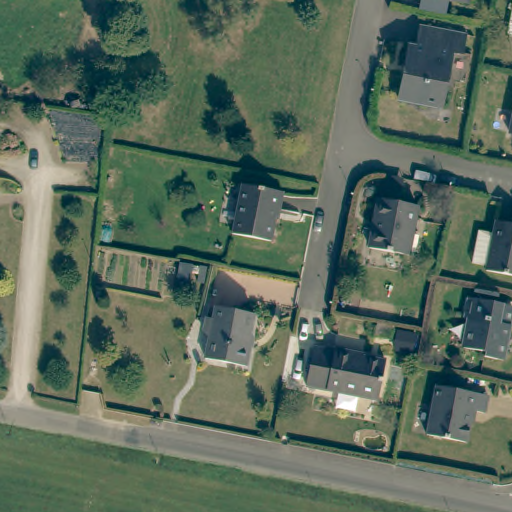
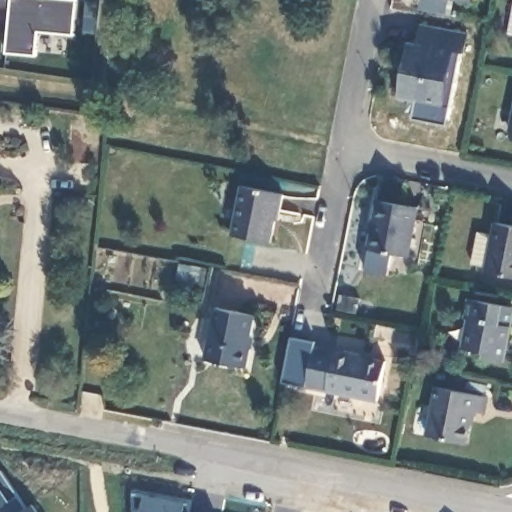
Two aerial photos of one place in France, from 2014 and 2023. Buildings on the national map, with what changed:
new [(75,15),(73,35),(38,32),(36,57),(7,53),(11,0),(77,0),(98,2),(98,17),(75,15)]
unchanged [(512,11),(512,29),(508,29),(512,11)]
unchanged [(466,34),(462,53),(453,52),(442,107),(398,97),(409,42),(416,43),(420,25),(466,34)]
unchanged [(512,120),(512,134),(509,133),(512,120)]
unchanged [(283,195),(279,215),(276,214),(271,243),(232,236),(241,187),(283,195)]
unchanged [(417,207),(408,256),(368,249),(377,200),(417,207)]
unchanged [(512,277),(486,272),(486,267),(471,264),(478,232),(493,235),(495,223),(512,226),(512,277)]
unchanged [(483,358),(484,353),(463,349),(469,321),(464,319),(467,299),(512,308),(512,310),(505,345),(502,362),(497,361),(483,358)]
unchanged [(209,338),(203,332),(206,319),(212,320),(215,308),(254,316),(248,347),(250,348),(246,367),(205,360),(209,338)]
unchanged [(334,348),(354,352),(354,355),(385,361),(377,400),(306,386),(313,347),(334,351),(334,348)]
unchanged [(479,409),(467,407),(460,439),(421,431),(431,382),(482,392),(479,409)]
new [(135,512),(133,492),(185,502),(183,512),(138,512),(135,512)]

